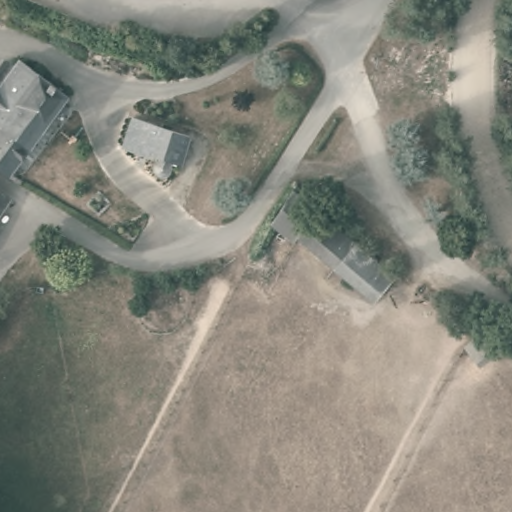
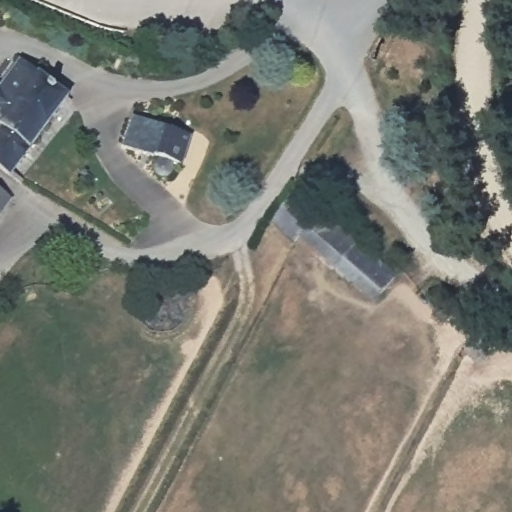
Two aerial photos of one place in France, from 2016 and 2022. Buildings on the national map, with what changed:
unchanged [(71,95),(10,173),(0,165),(0,126),(1,124),(0,122),(0,84),(1,85),(23,56),(71,95)]
unchanged [(190,132),(181,161),(175,160),(172,169),(167,173),(160,172),(155,169),(155,163),(158,154),(138,147),(148,119),(190,132)]
unchanged [(13,202),(0,220),(0,193),(13,202)]
unchanged [(381,292),(375,299),(358,285),(300,235),(305,228),(320,211),(378,261),(395,275),(381,292)]
unchanged [(482,329),(500,353),(480,368),(472,358),(462,345),(482,329)]

